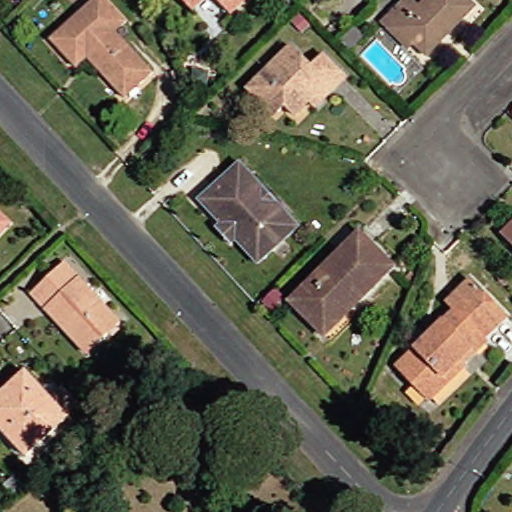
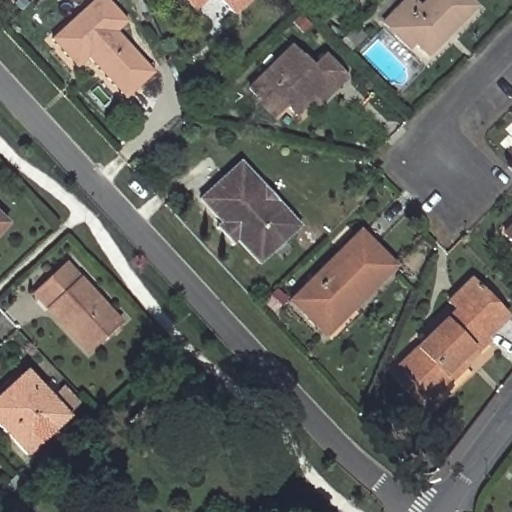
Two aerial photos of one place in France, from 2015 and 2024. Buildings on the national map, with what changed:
unchanged [(90,53),(78,63),(52,35),(93,0),(113,0),(129,18),(119,26),(156,68),(142,81),(127,94),(122,88),(90,53)]
unchanged [(186,0),(205,0),(195,10),(186,0)]
unchanged [(220,0),(247,0),(233,14),(220,0)]
unchanged [(406,0),(414,0),(420,6),(426,0),(470,0),(477,7),(429,55),(416,43),(410,49),(392,31),(383,21),(406,0)]
unchanged [(363,32),(349,46),(339,37),(346,30),(353,22),(363,32)]
unchanged [(251,88),(292,47),(314,68),(326,56),(345,75),(334,86),(312,108),(306,102),(297,112),(286,101),(280,107),(274,112),(261,99),(251,88)]
unchanged [(262,263),(240,239),(236,242),(221,226),(224,222),(202,199),(217,184),(228,174),(242,160),(261,180),(285,206),(302,225),(288,238),(276,249),(262,263)]
unchanged [(0,227),(0,208),(9,217),(0,227)]
unchanged [(505,232),(512,225),(512,239),(505,232)]
unchanged [(302,309),(293,299),(300,291),(361,229),(395,264),(355,305),(327,334),(322,330),(302,309)]
unchanged [(34,292),(66,262),(122,321),(95,347),(89,352),(55,315),(34,292)]
unchanged [(416,347),(456,308),(449,300),(472,279),(508,315),(488,336),(490,340),(469,360),(471,362),(432,397),(404,367),(400,363),(416,347)]
unchanged [(143,366),(165,344),(174,353),(151,375),(143,366)]
unchanged [(70,416),(27,454),(0,424),(0,396),(28,370),(70,416)]
unchanged [(70,440),(57,454),(51,448),(65,434),(70,440)]

